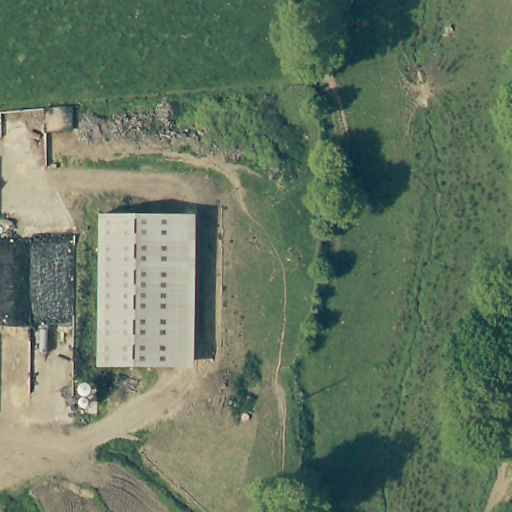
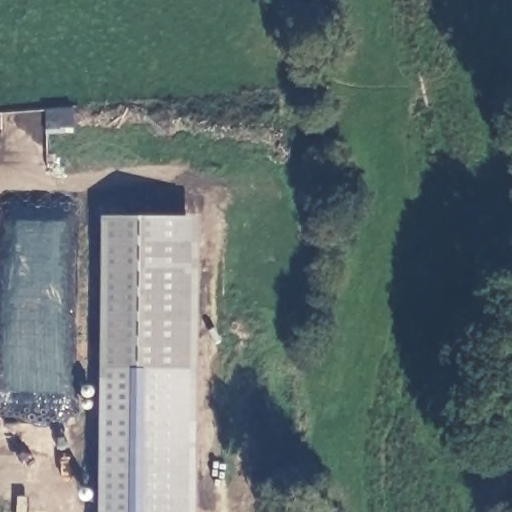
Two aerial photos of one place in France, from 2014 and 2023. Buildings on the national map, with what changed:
unchanged [(104,216),(202,217),(200,369),(102,368),(104,216)]
new [(200,369),(199,512),(101,512),(102,368),(200,369)]

